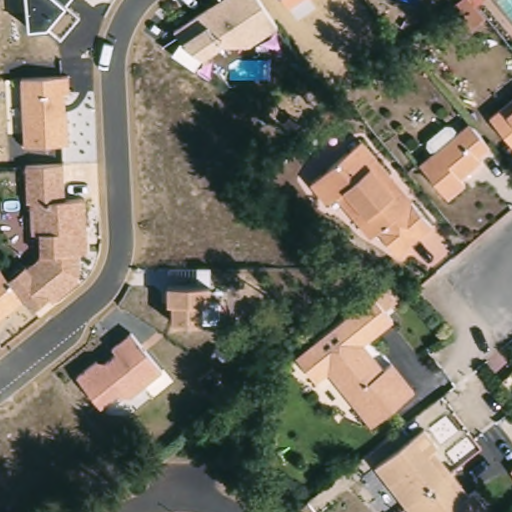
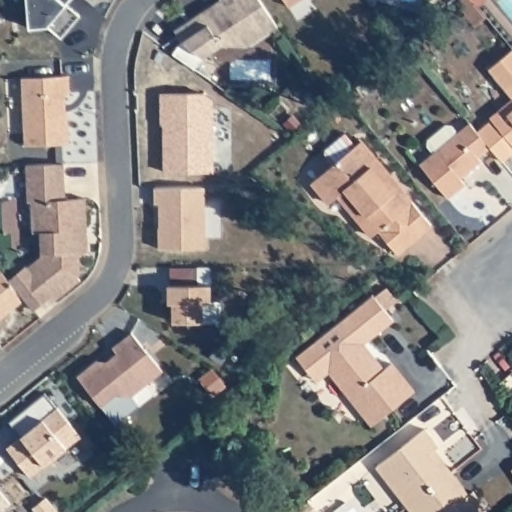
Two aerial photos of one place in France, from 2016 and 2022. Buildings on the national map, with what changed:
unchanged [(77,16),(60,37),(50,29),(28,29),(25,0),(68,0),(65,5),(77,16)]
unchanged [(249,45),(222,45),(202,56),(194,69),(173,54),(180,42),(173,29),(218,0),(260,0),(277,24),(249,45)]
unchanged [(300,0),(287,7),(282,0),(300,0)]
unchanged [(466,16),(470,12),(461,2),(462,0),(475,0),(479,5),(489,17),(475,27),(466,16)]
unchanged [(70,91),(66,91),(69,142),(24,145),(20,79),(69,76),(70,91)]
new [(160,125),(160,94),(204,92),(212,101),(213,172),(163,171),(163,125),(160,125)]
unchanged [(487,122),(500,111),(512,101),(512,152),(487,122)]
unchanged [(430,155),(424,149),(425,142),(442,128),(448,129),(454,136),(465,126),(486,150),(474,160),(477,164),(456,181),(461,187),(444,201),(416,167),(430,155)]
unchanged [(393,257),(374,234),(367,239),(335,200),(326,207),(309,186),(359,145),(387,179),(408,205),(427,228),(393,257)]
unchanged [(65,200),(85,198),(88,252),(79,253),(80,278),(53,302),(48,297),(33,310),(8,280),(39,255),(38,234),(30,235),(30,202),(26,202),(26,165),(63,164),(65,200)]
new [(154,204),(154,188),(204,186),(204,247),(159,248),(158,204),(154,204)]
unchanged [(191,266),(212,266),(211,301),(222,301),(221,322),(171,324),(170,303),(166,303),(167,283),(191,283),(191,266)]
unchanged [(0,270),(23,298),(0,317),(0,270)]
unchanged [(372,291),(392,316),(362,341),(383,367),(391,360),(414,388),(372,422),(328,367),(315,377),(295,353),(334,322),(372,291)]
unchanged [(107,361),(118,352),(115,347),(133,336),(161,372),(129,398),(116,395),(101,407),(76,376),(96,361),(107,361)]
new [(21,436),(10,421),(46,392),(81,436),(31,476),(8,447),(21,436)]
unchanged [(488,507),(481,512),(414,512),(377,465),(425,427),(439,445),(435,447),(453,470),(470,492),(474,488),(488,507)]
unchanged [(308,499),(317,512),(291,512),(308,499)]

